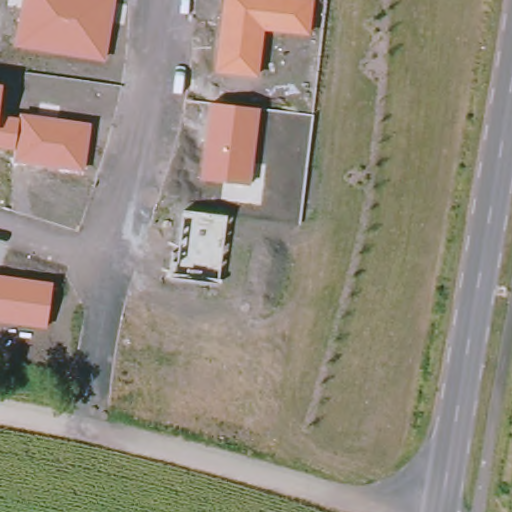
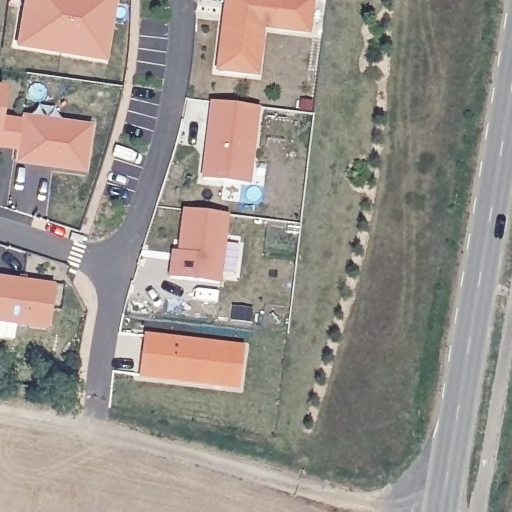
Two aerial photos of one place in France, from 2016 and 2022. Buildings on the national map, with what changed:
unchanged [(15,45),(23,0),(116,0),(105,60),(15,45)]
unchanged [(263,30),(257,80),(215,74),(223,0),(313,0),(310,36),(263,30)]
unchanged [(0,94),(0,86),(1,86),(0,94)]
unchanged [(210,104),(260,110),(250,185),(201,179),(210,104)]
unchanged [(19,114),(90,124),(85,170),(13,161),(15,151),(0,148),(0,115),(18,118),(19,114)]
unchanged [(227,217),(218,285),(168,279),(172,249),(178,249),(183,212),(227,217)]
unchanged [(47,329),(0,323),(0,277),(52,284),(47,329)]
new [(138,378),(143,335),(243,346),(238,390),(138,378)]

